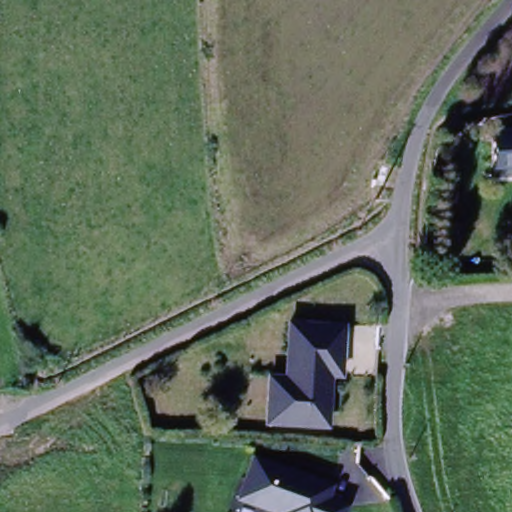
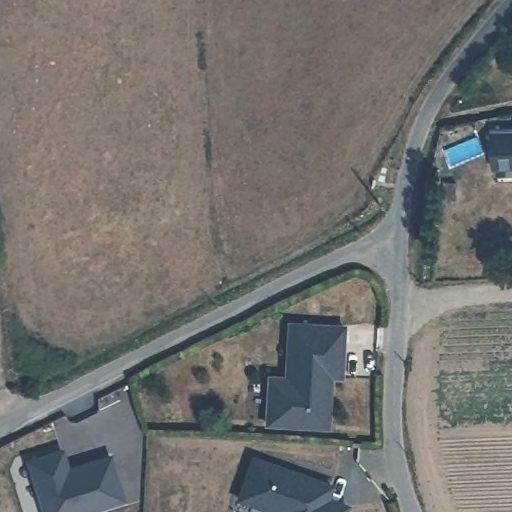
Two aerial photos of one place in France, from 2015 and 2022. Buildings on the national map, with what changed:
unchanged [(492,130),(496,130),(495,121),(512,121),(512,170),(494,171),(492,130)]
unchanged [(461,206),(447,206),(448,185),(461,185),(461,206)]
unchanged [(346,371),(335,370),(333,421),(278,418),(272,418),(274,371),(291,372),(294,317),(348,319),(346,360),(346,371)]
new [(63,454),(69,473),(111,460),(124,503),(97,512),(44,512),(30,464),(63,454)]
unchanged [(337,484),(333,497),(353,504),(350,512),(284,512),(244,497),(259,456),(337,484)]

